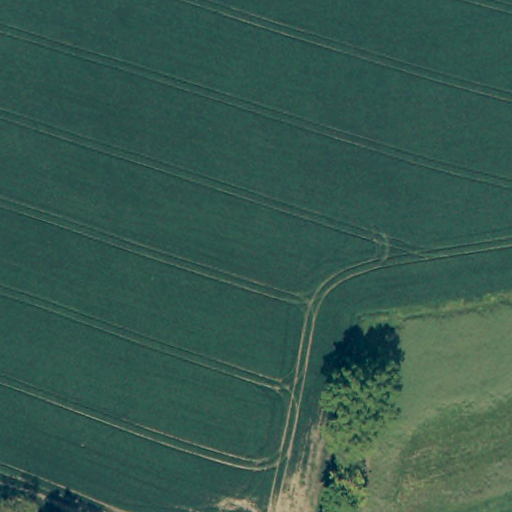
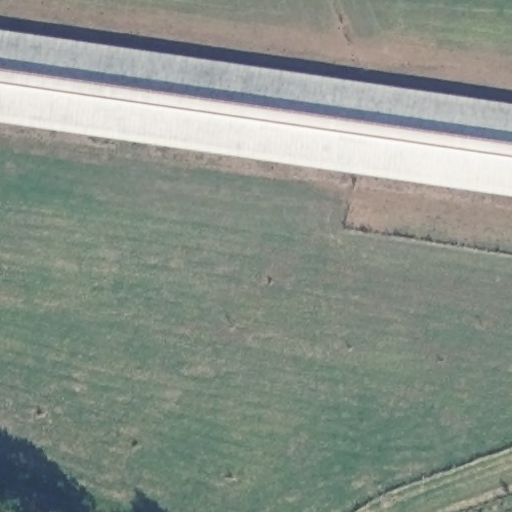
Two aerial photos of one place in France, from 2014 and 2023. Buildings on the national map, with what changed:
new [(0,123),(0,30),(512,103),(512,194),(0,123)]

